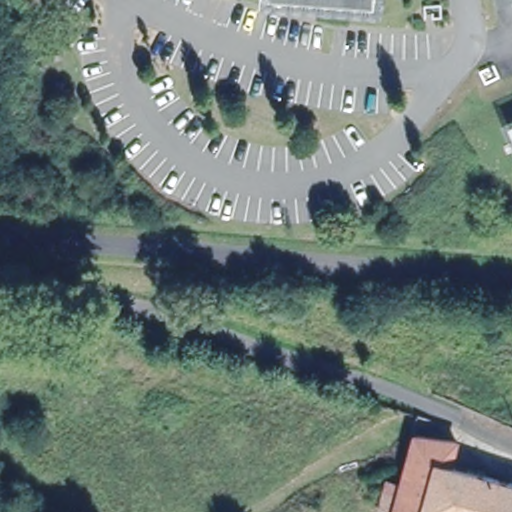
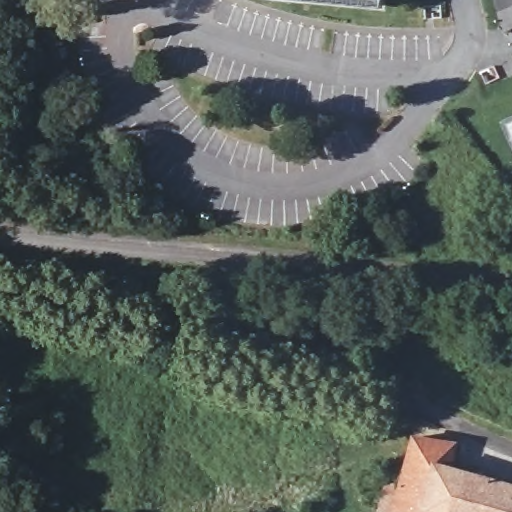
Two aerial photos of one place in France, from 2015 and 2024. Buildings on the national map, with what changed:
unchanged [(328,0),(383,0),(383,5),(328,0)]
unchanged [(457,439),(449,463),(512,481),(512,512),(391,512),(378,508),(386,479),(399,483),(408,452),(414,432),(457,439)]

